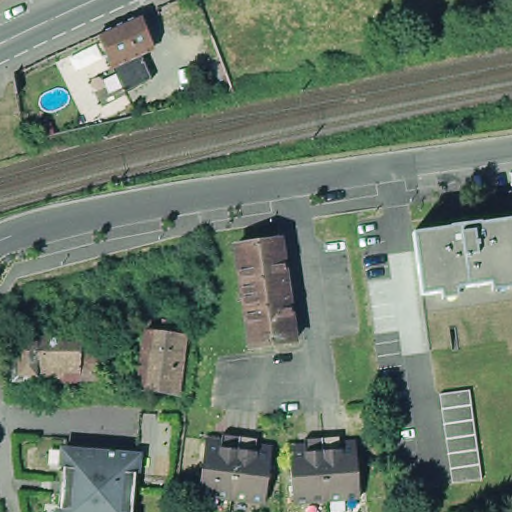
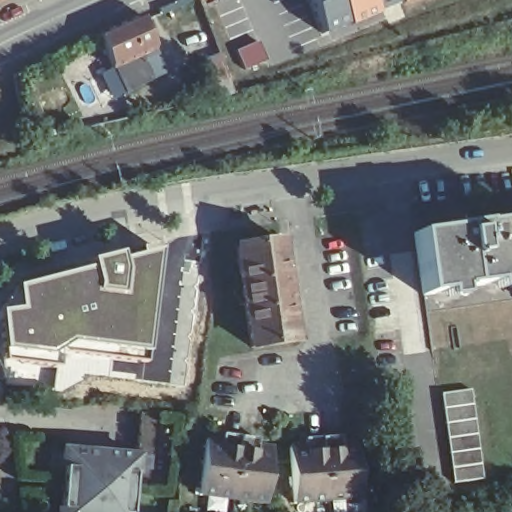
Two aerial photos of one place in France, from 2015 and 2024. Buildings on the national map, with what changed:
new [(326,37),(312,0),(416,0),(326,37)]
unchanged [(141,16),(155,50),(142,55),(145,60),(132,65),(130,61),(113,68),(100,34),(141,16)]
demolished [(176,236),(175,212),(211,207),(208,232),(205,260),(177,256),(176,236)]
unchanged [(512,279),(465,286),(465,288),(427,294),(419,233),(512,220),(512,279)]
unchanged [(286,239),(302,340),(256,347),(241,245),(286,239)]
new [(14,307),(11,285),(87,265),(86,259),(120,250),(122,257),(157,250),(160,250),(147,364),(61,356),(58,369),(2,363),(0,345),(0,310),(14,307)]
demolished [(201,290),(199,310),(141,303),(147,252),(177,256),(205,260),(201,290)]
demolished [(162,320),(175,321),(173,333),(186,335),(178,395),(138,389),(146,330),(161,331),(162,320)]
demolished [(28,337),(94,336),(118,336),(111,380),(95,380),(30,381),(28,337)]
unchanged [(473,388),(485,482),(454,486),(441,393),(473,388)]
unchanged [(235,442),(227,504),(193,500),(200,445),(209,446),(216,447),(217,440),(235,442)]
unchanged [(250,451),(258,452),(266,452),(261,508),(227,504),(235,442),(251,445),(250,451)]
unchanged [(352,507),(318,510),(311,448),(328,446),(330,453),(337,452),(345,451),(352,507)]
unchanged [(136,512),(57,512),(60,447),(140,458),(136,512)]
unchanged [(296,512),(284,512),(280,459),(288,458),(295,457),(295,450),(311,448),(318,510),(296,512)]

